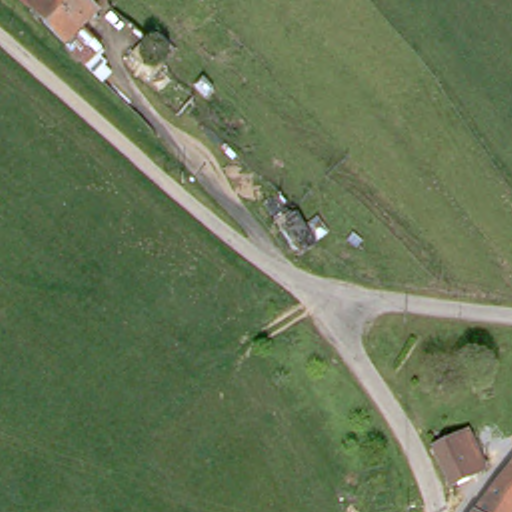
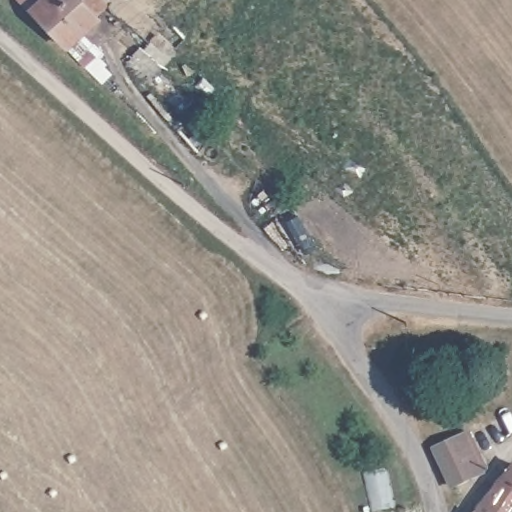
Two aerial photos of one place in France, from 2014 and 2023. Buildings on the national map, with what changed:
unchanged [(65,37),(28,4),(24,0),(87,0),(93,6),(78,22),(89,33),(76,47),(65,37)]
unchanged [(311,253),(288,221),(299,213),(322,245),(311,253)]
unchanged [(449,480),(447,477),(431,445),(461,430),(479,467),(449,480)]
unchanged [(512,512),(509,512),(488,497),(512,465),(512,512)]
unchanged [(488,497),(509,512),(476,512),(488,497)]

